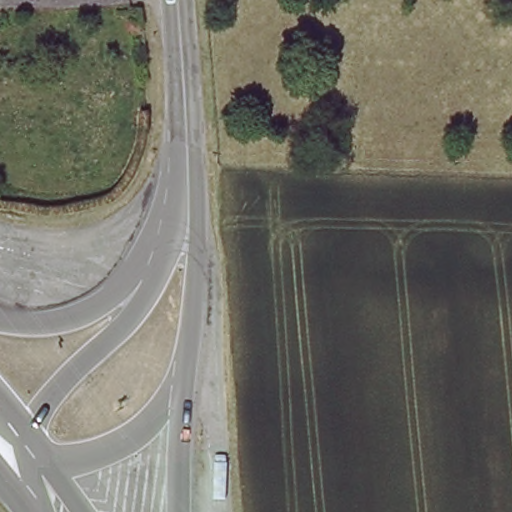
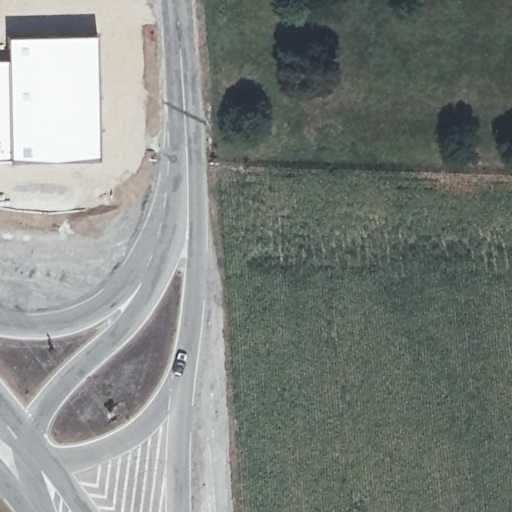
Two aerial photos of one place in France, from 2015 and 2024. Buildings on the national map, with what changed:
new [(7,33),(97,31),(100,155),(0,158),(0,57),(7,57),(7,33)]

